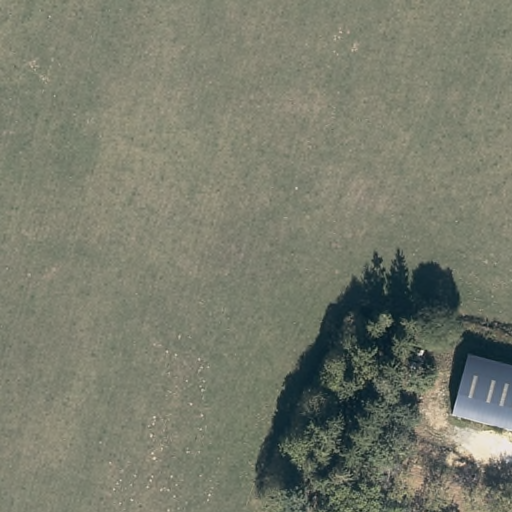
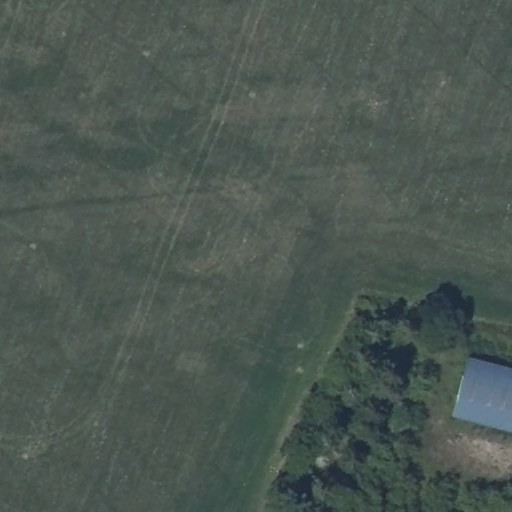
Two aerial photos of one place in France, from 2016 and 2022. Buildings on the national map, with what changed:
unchanged [(469,358),(512,370),(512,431),(455,416),(469,358)]

